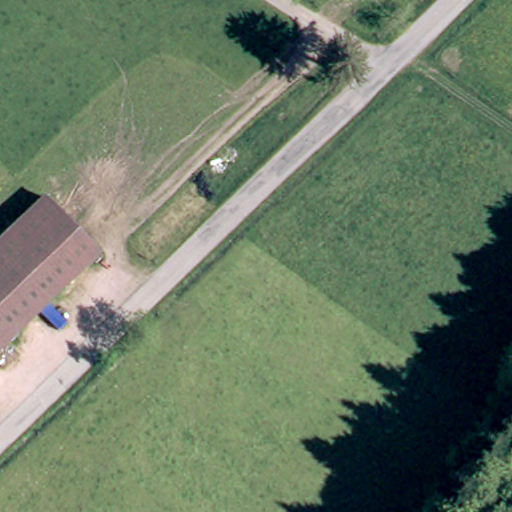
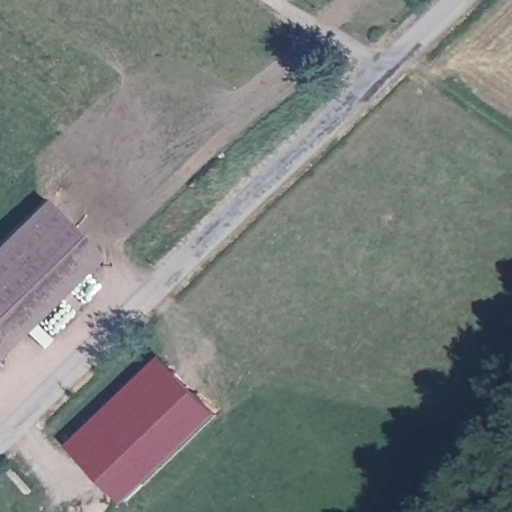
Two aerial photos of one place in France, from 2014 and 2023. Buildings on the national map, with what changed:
unchanged [(43,198),(53,206),(0,256),(0,239),(43,198)]
unchanged [(53,206),(104,260),(0,359),(0,256),(53,206)]
new [(71,444),(164,354),(222,413),(127,502),(71,444)]

